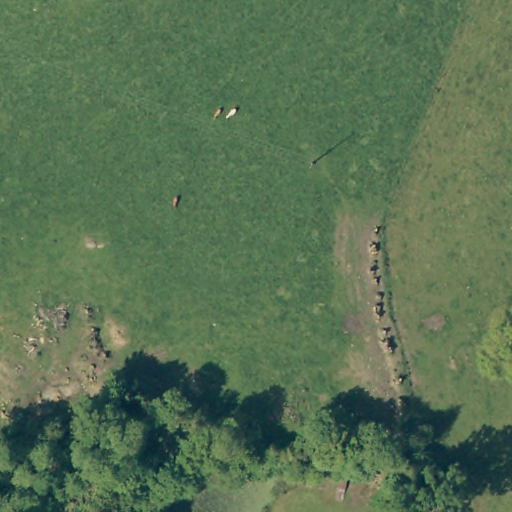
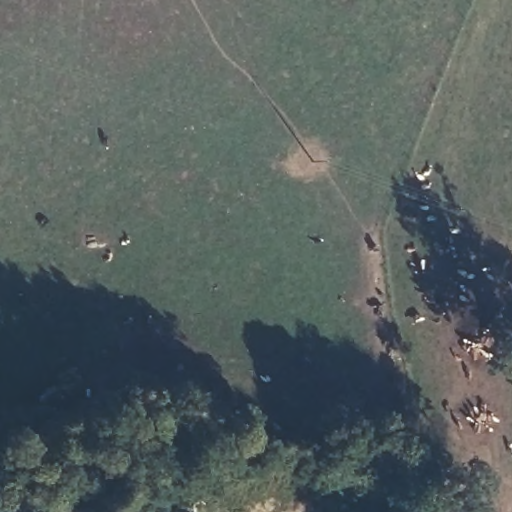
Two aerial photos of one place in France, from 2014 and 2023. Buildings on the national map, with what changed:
unchanged [(332,468),(379,477),(380,512),(377,512),(321,491),(332,468)]

